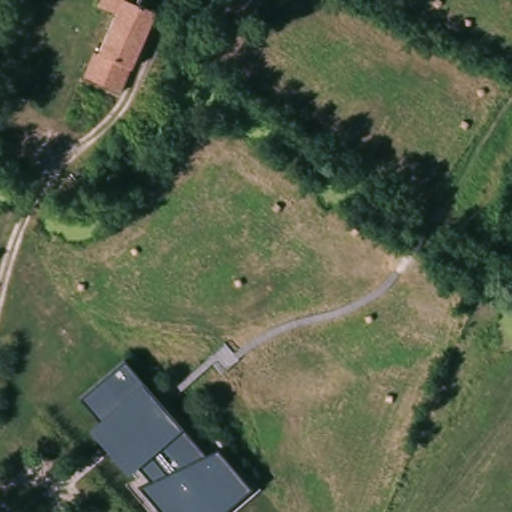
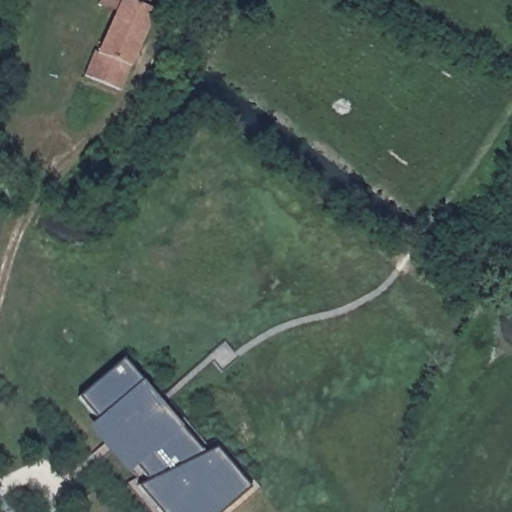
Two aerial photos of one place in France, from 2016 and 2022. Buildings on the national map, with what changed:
unchanged [(104,9),(85,2),(85,0),(152,0),(117,96),(70,78),(83,42),(91,45),(104,9)]
unchanged [(150,384),(100,430),(81,410),(130,364),(150,384)]
unchanged [(130,480),(112,461),(105,455),(89,439),(100,430),(150,384),(190,425),(140,470),(130,480)]
unchanged [(227,439),(262,478),(224,512),(163,512),(142,491),(154,484),(140,470),(190,425),(215,446),(227,439)]

